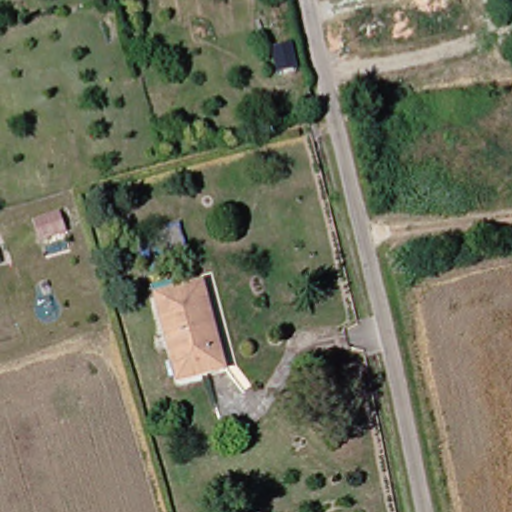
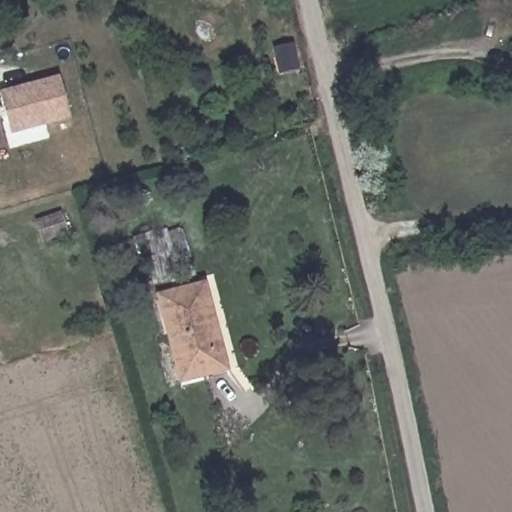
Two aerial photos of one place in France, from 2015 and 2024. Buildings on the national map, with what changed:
new [(70,120),(11,135),(0,95),(0,91),(58,75),(70,120)]
new [(42,242),(35,220),(61,211),(69,234),(42,242)]
unchanged [(188,386),(160,292),(195,282),(203,280),(224,343),(231,372),(188,386)]

